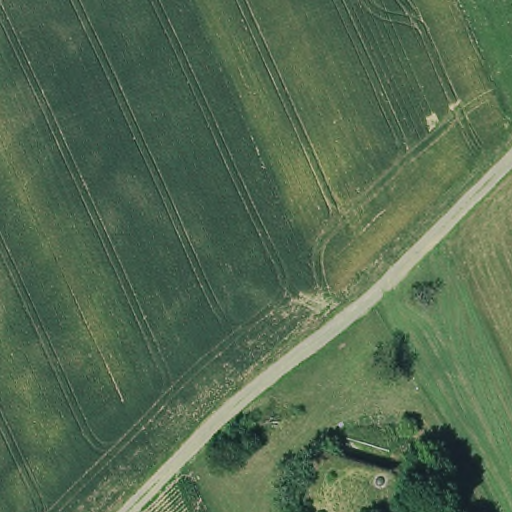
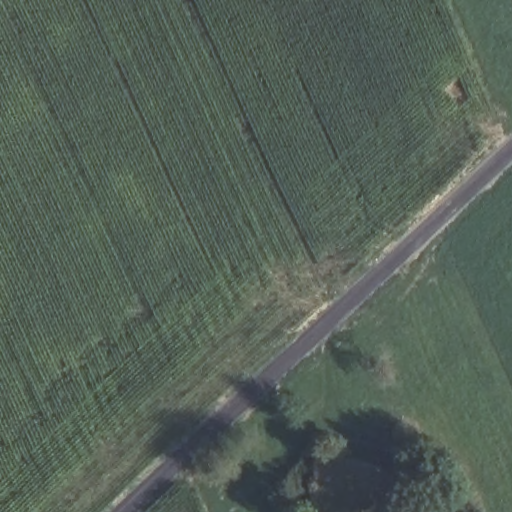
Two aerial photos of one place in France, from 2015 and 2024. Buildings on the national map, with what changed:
unchanged [(431,499),(432,512),(312,512),(311,486),(315,459),(330,450),(395,468),(417,473),(431,499)]

